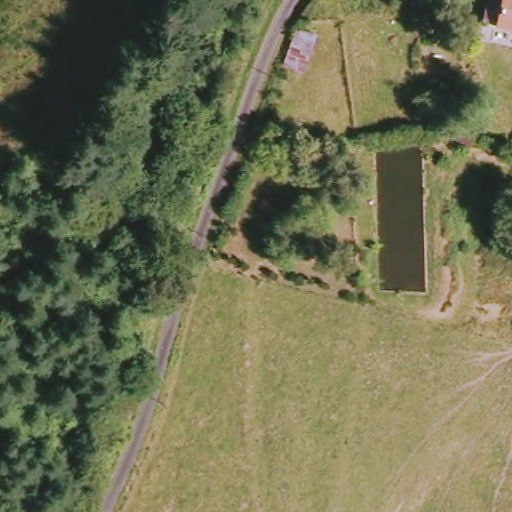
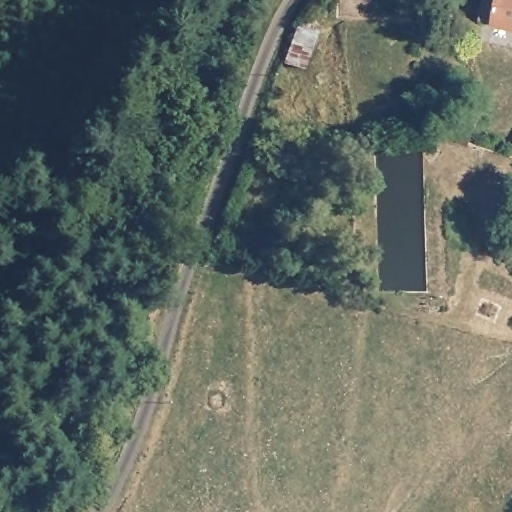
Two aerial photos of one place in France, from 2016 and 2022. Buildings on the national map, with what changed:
unchanged [(502,26),(481,23),(486,0),(512,0),(512,28),(502,26)]
unchanged [(307,68),(290,61),(301,30),(318,37),(307,68)]
unchanged [(447,95),(479,116),(474,143),(451,137),(447,95)]

